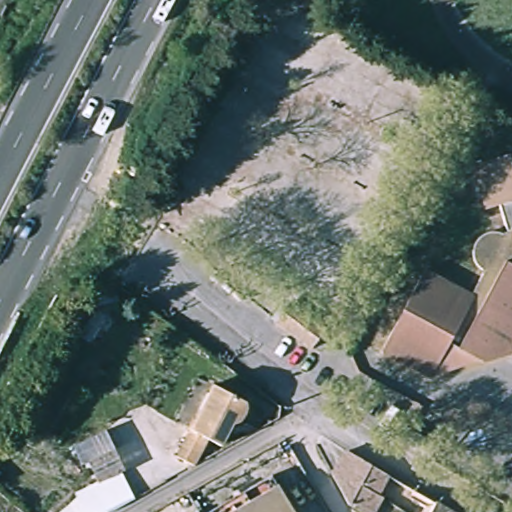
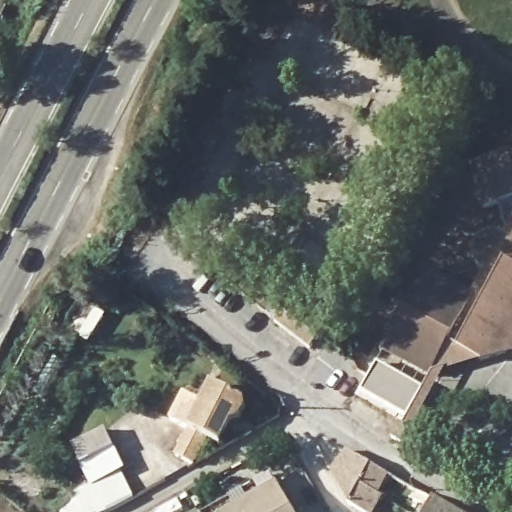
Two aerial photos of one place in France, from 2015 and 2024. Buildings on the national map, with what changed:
unchanged [(483,208),(470,165),(507,154),(510,162),(512,161),(512,225),(501,228),(495,204),(483,208)]
unchanged [(498,234),(501,228),(512,225),(512,263),(490,251),(498,234)]
unchanged [(374,349),(416,262),(468,289),(480,266),(472,261),(468,253),(468,246),(470,239),(477,232),(485,230),(491,230),(498,234),(490,251),(512,263),(512,334),(505,350),(480,356),(425,373),(421,373),(374,349)]
unchanged [(326,330),(313,346),(279,318),(292,301),(326,330)]
new [(407,417),(362,392),(377,363),(423,390),(407,417)]
unchanged [(243,405),(248,409),(249,412),(248,419),(246,424),(242,427),(237,428),(225,452),(207,443),(194,470),(175,461),(208,390),(243,405)]
unchanged [(397,415),(435,435),(429,448),(426,452),(389,433),(392,426),(397,415)]
unchanged [(106,512),(59,512),(78,498),(76,492),(95,482),(85,460),(115,449),(135,499),(106,512)]
unchanged [(383,498),(375,512),(361,512),(350,505),(330,471),(346,450),(390,475),(378,495),(383,498)]
unchanged [(297,512),(220,512),(277,479),(297,512)]
unchanged [(467,512),(429,512),(439,495),(467,512)]

